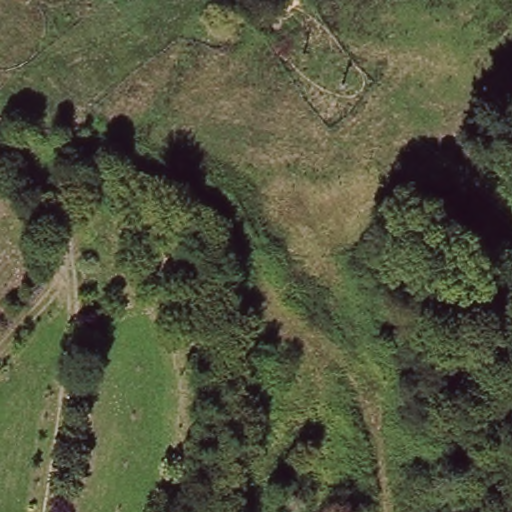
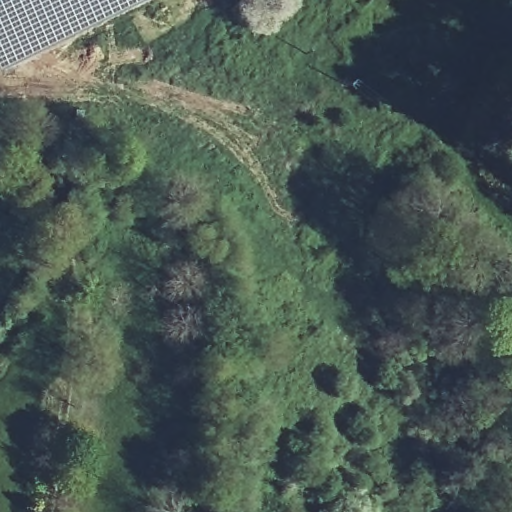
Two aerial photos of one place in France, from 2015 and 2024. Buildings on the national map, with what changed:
new [(123,14),(0,72),(0,0),(148,0),(123,14)]

